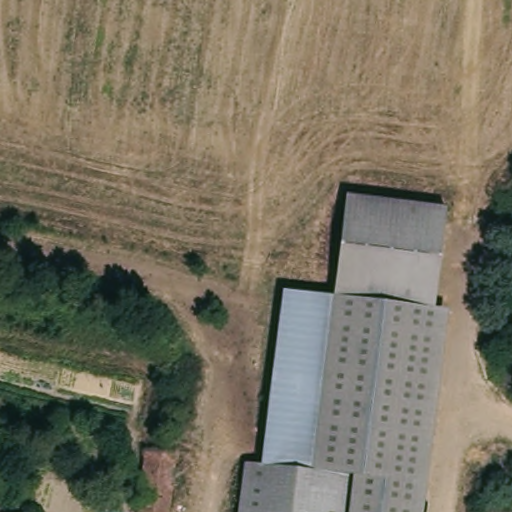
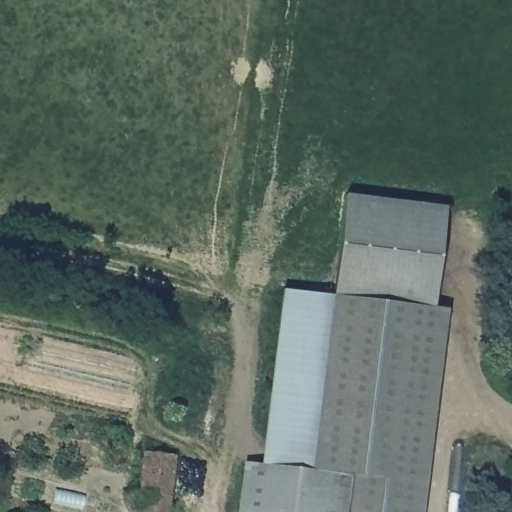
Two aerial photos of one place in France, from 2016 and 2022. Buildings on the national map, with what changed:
unchanged [(310,473),(318,419),(335,298),(347,207),(348,200),(447,210),(445,219),(415,425),(401,512),(338,512),(343,477),(310,473)]
unchanged [(310,473),(259,468),(280,288),(335,298),(310,473)]
unchanged [(148,454),(175,456),(167,512),(133,512),(142,454),(148,454)]
unchanged [(259,468),(310,473),(343,477),(338,512),(236,512),(243,466),(259,468)]
unchanged [(122,512),(101,512),(102,508),(122,512)]

